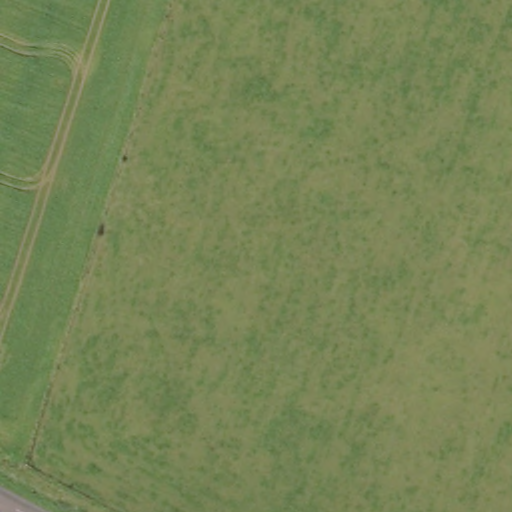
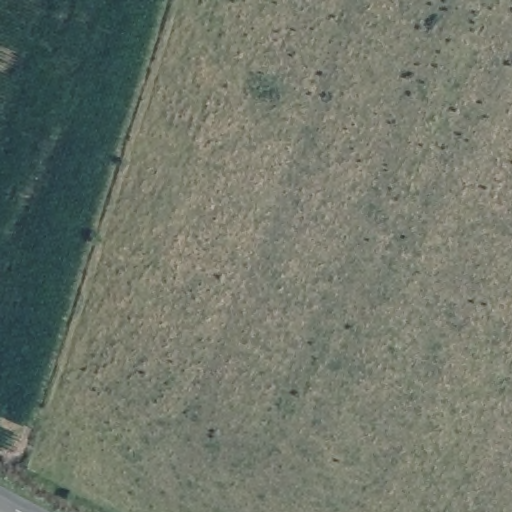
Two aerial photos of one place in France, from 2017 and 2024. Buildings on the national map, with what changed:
[]

